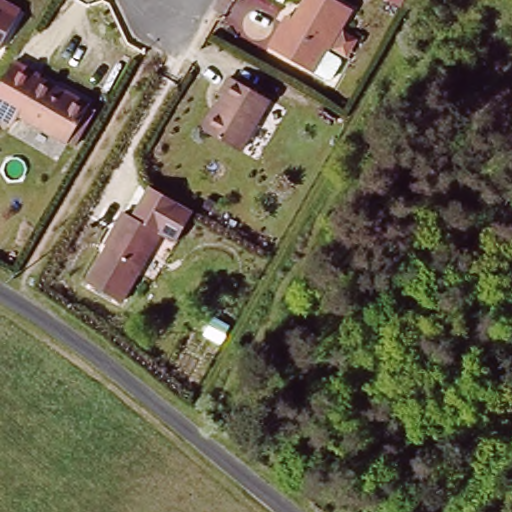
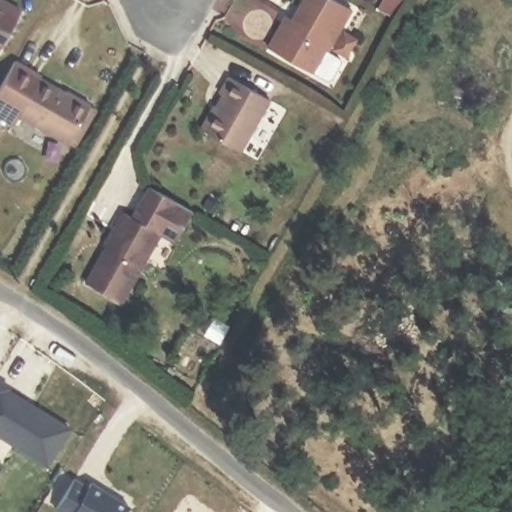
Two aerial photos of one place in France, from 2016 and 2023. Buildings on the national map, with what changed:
unchanged [(0,1),(0,0),(6,0),(21,9),(0,47),(0,1)]
unchanged [(288,22),(301,0),(327,0),(347,12),(323,54),(322,52),(308,76),(263,51),(280,24),(282,17),(288,22)]
unchanged [(407,0),(401,11),(388,4),(390,0),(407,0)]
unchanged [(15,116),(10,124),(0,118),(0,86),(13,62),(29,76),(8,112),(15,116)]
unchanged [(73,132),(67,144),(60,141),(60,142),(8,112),(29,76),(62,95),(63,92),(81,102),(80,104),(87,107),(73,132)]
unchanged [(207,115),(210,116),(220,99),(216,97),(225,80),(265,103),(237,154),(198,132),(207,115)]
unchanged [(147,187),(192,210),(175,242),(158,236),(130,220),(147,187)]
unchanged [(211,207),(222,212),(218,222),(207,215),(211,207)]
unchanged [(105,249),(103,248),(122,216),(158,236),(120,306),(85,286),(105,249)]
unchanged [(219,327),(233,334),(224,350),(210,342),(219,327)]
new [(0,436),(0,380),(10,387),(10,389),(70,428),(47,467),(0,436)]
new [(126,512),(59,512),(55,510),(74,477),(87,485),(90,481),(130,507),(126,512)]

